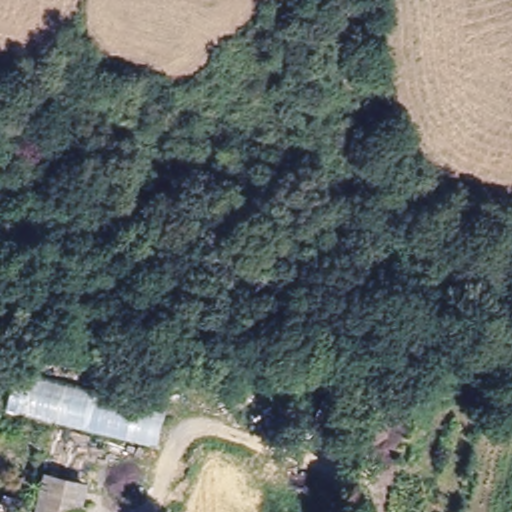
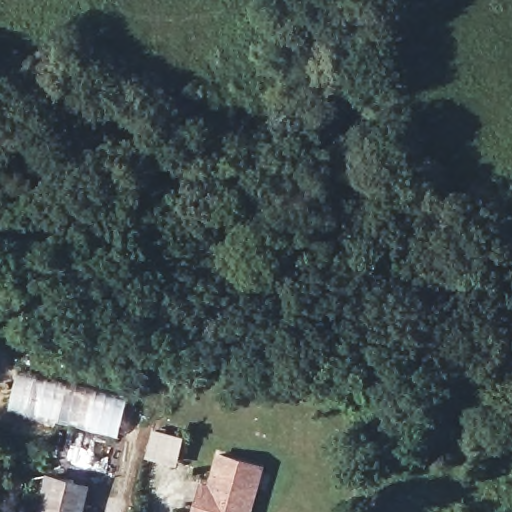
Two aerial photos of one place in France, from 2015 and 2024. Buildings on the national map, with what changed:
unchanged [(5,409),(15,371),(171,409),(158,446),(5,409)]
new [(208,483),(218,449),(264,464),(250,512),(190,512),(199,480),(208,483)]
unchanged [(88,483),(81,512),(37,512),(46,472),(88,483)]

